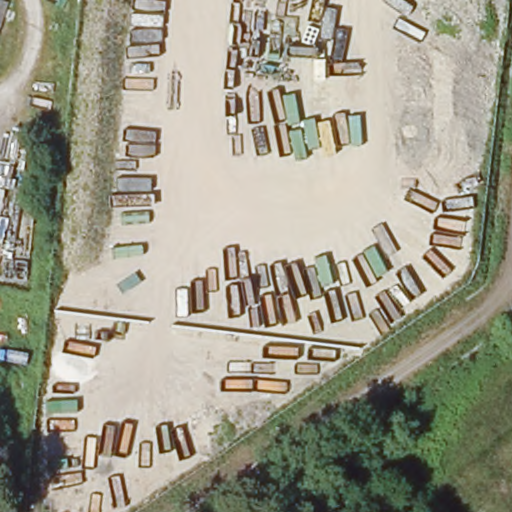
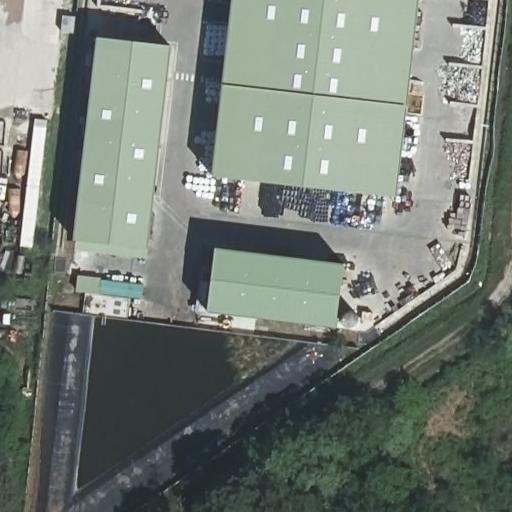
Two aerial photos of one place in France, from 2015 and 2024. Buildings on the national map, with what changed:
demolished [(2,0),(10,3),(0,31),(0,0),(2,0)]
new [(216,181),(238,0),(419,0),(395,202),(216,181)]
new [(75,240),(99,37),(136,42),(174,46),(150,249),(112,245),(75,240)]
new [(216,249),(344,265),(336,328),(208,312),(216,249)]
new [(80,276),(145,283),(142,300),(78,292),(80,276)]

